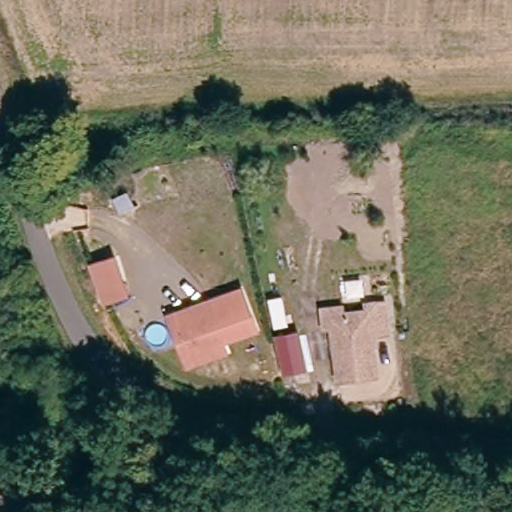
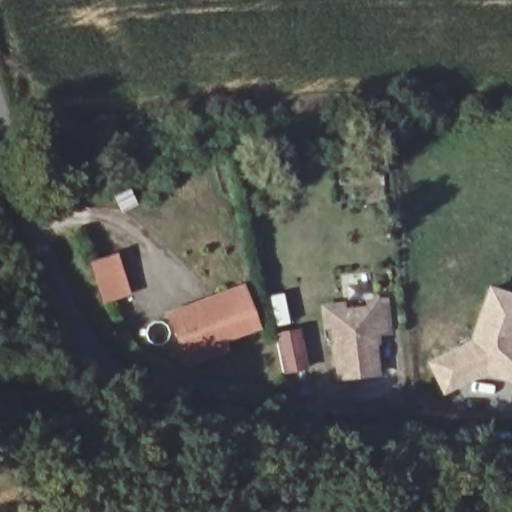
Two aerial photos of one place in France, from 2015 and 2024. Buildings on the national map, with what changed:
unchanged [(135,291),(111,300),(97,262),(120,253),(135,291)]
unchanged [(360,278),(363,296),(348,298),(345,280),(360,278)]
new [(512,294),(512,383),(486,374),(443,394),(427,362),(469,340),(488,285),(512,294)]
unchanged [(174,315),(246,286),(262,325),(229,339),(207,348),(211,357),(194,364),(174,315)]
unchanged [(365,299),(382,296),(386,329),(370,331),(375,371),(338,376),(331,324),(324,325),(321,305),(340,303),(341,309),(366,306),(365,299)]
unchanged [(307,364),(282,370),(273,336),(298,329),(307,364)]

